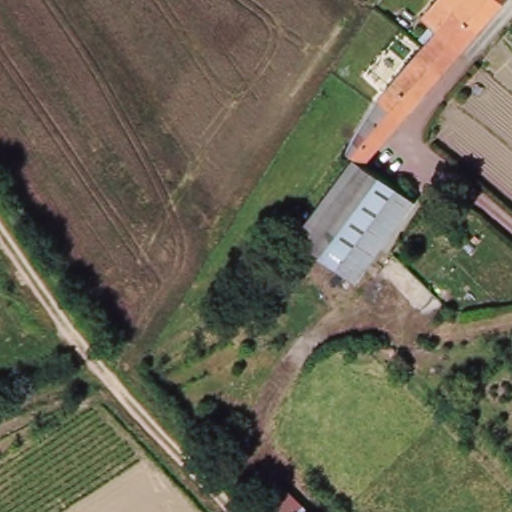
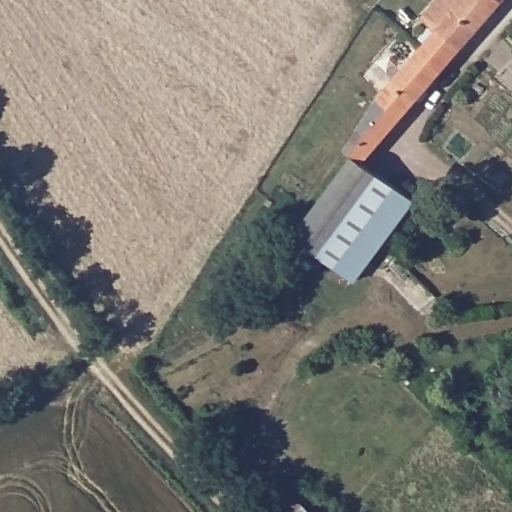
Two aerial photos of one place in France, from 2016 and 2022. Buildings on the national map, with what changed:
unchanged [(368,106),(418,47),(433,31),(436,27),(421,13),(434,0),(509,0),(502,7),(459,52),(443,69),(380,140),(361,161),(412,202),(352,283),(297,241),(289,234),(349,156),(341,148),(360,119),(368,106)]

